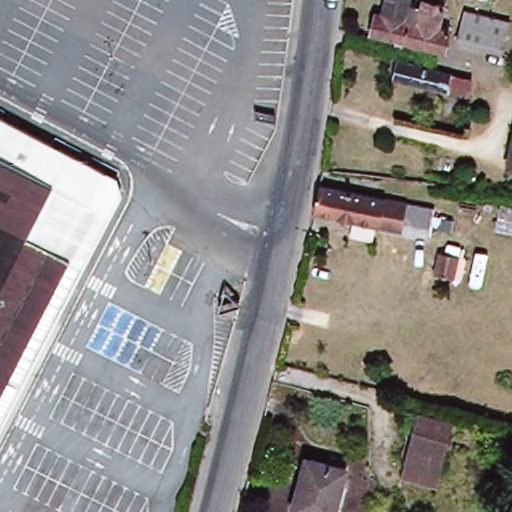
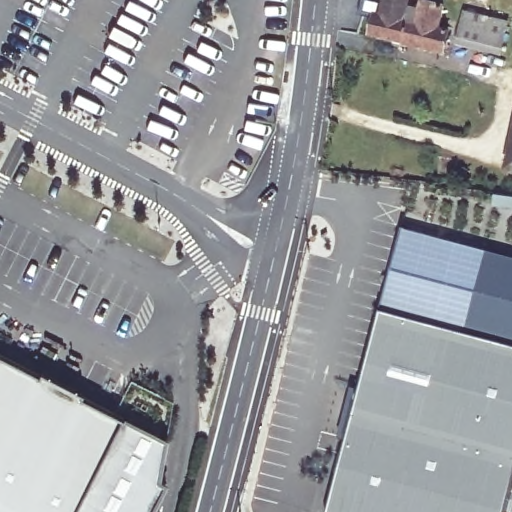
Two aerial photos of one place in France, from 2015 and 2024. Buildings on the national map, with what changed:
unchanged [(448,8),(443,30),(453,32),(448,52),(376,36),(381,16),(388,17),(391,0),(414,0),(413,6),(427,9),(428,4),(448,8)]
unchanged [(477,15),(512,23),(512,45),(510,54),(469,44),(477,15)]
demolished [(398,65),(450,77),(447,94),(394,81),(398,65)]
demolished [(83,266),(75,261),(40,243),(68,191),(0,156),(0,119),(118,180),(126,184),(124,187),(83,266)]
unchanged [(507,167),(512,146),(512,168),(507,167)]
demolished [(40,243),(75,261),(0,408),(0,156),(68,191),(40,243)]
demolished [(319,189),(408,205),(403,232),(314,216),(319,189)]
new [(505,512),(329,512),(381,313),(403,230),(512,259),(512,484),(505,512)]
demolished [(197,256),(171,302),(131,283),(157,234),(197,256)]
new [(0,512),(0,354),(122,418),(75,512),(0,512)]
demolished [(421,417),(450,424),(436,482),(406,475),(421,417)]
new [(167,485),(153,512),(75,512),(122,418),(166,440),(161,481),(167,485)]
demolished [(346,470),(336,512),(299,512),(293,511),(306,459),(346,470)]

